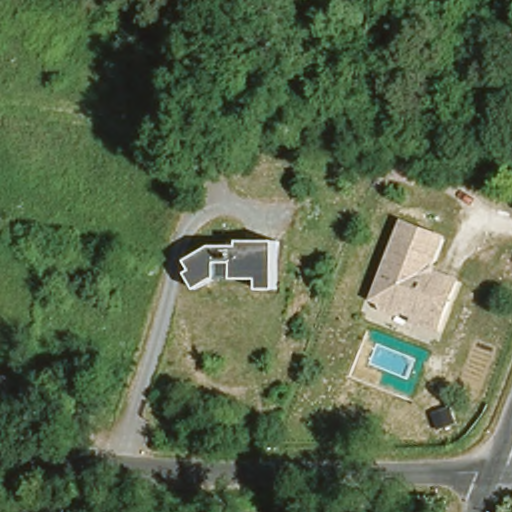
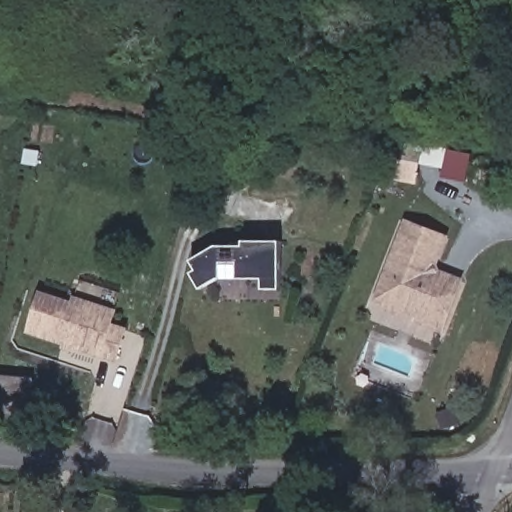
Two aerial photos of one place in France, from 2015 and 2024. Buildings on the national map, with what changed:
new [(470,154),(465,183),(440,178),(441,168),(419,164),(416,180),(392,178),(400,142),(470,154)]
unchanged [(437,269),(465,277),(442,332),(372,303),(404,219),(450,234),(437,269)]
unchanged [(282,289),(264,290),(265,279),(240,279),(240,262),(224,263),(224,278),(202,290),(194,273),(199,270),(194,260),(219,247),(246,246),(246,239),(282,239),(282,289)]
new [(111,323),(127,328),(115,362),(74,348),(72,352),(60,348),(61,344),(25,332),(37,290),(70,302),(73,295),(117,310),(111,323)]
unchanged [(31,396),(0,395),(0,369),(32,369),(31,396)]

